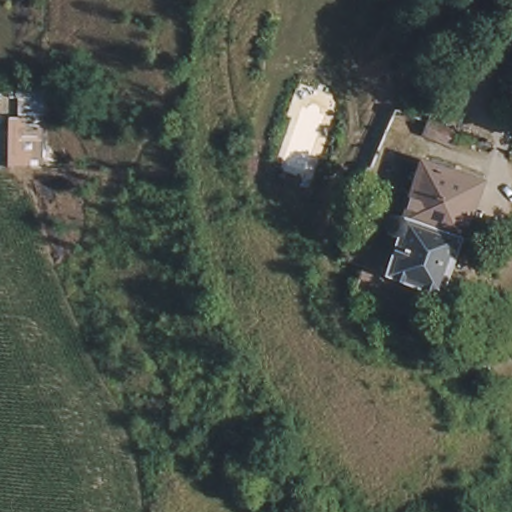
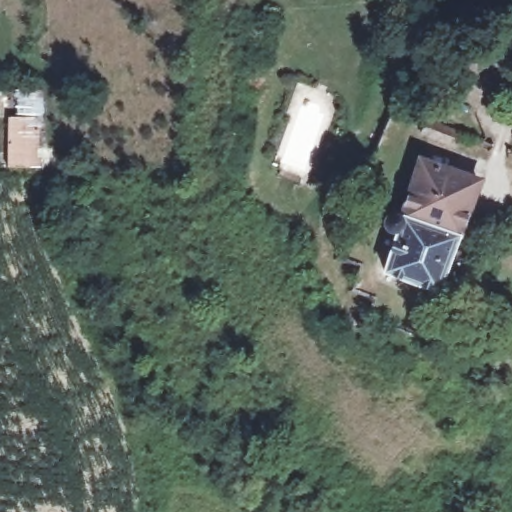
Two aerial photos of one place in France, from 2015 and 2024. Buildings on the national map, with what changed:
unchanged [(11,115),(48,115),(50,166),(12,166),(11,115)]
unchanged [(391,267),(405,231),(404,231),(402,230),(401,229),(399,228),(398,227),(397,226),(397,224),(396,222),(394,220),(394,219),(394,217),(394,215),(395,213),(396,212),(397,210),(398,209),(399,207),(400,206),(402,205),(404,204),(406,203),(408,203),(409,203),(412,203),(414,204),(431,159),(484,178),(444,286),(391,267)]

